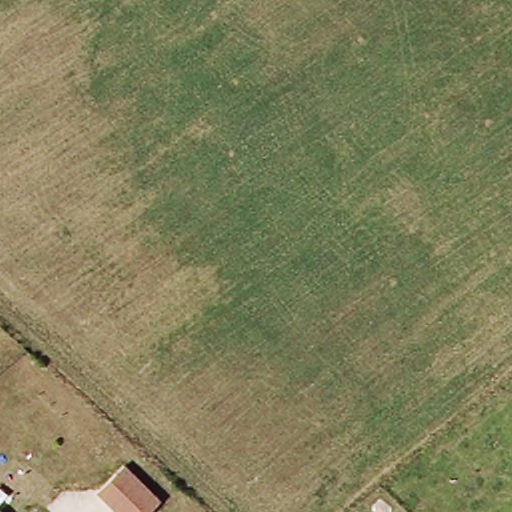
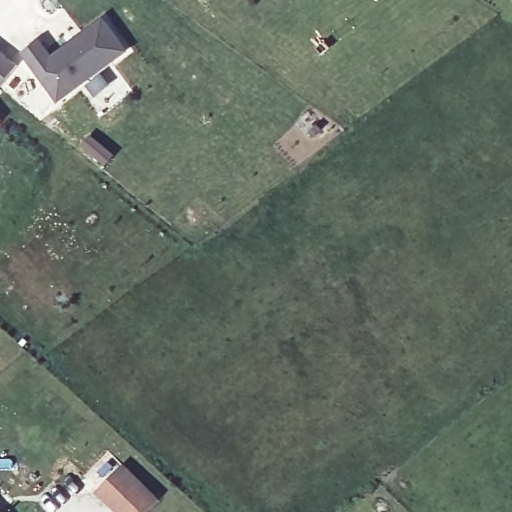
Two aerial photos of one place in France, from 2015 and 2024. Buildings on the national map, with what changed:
new [(41,40),(53,57),(104,19),(127,50),(58,99),(24,52),(41,40)]
new [(0,90),(0,55),(17,68),(0,90)]
unchanged [(129,512),(101,484),(126,461),(162,495),(145,512),(129,512)]

